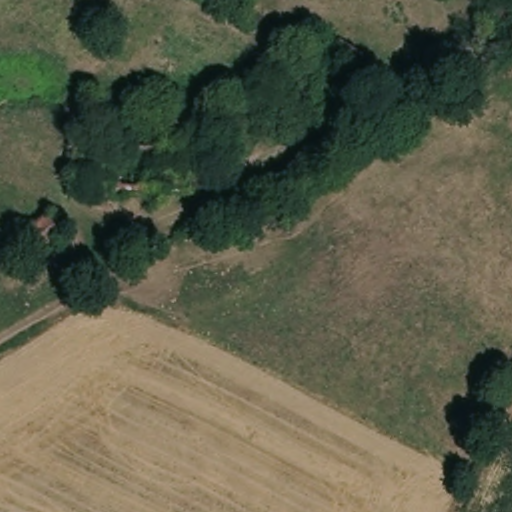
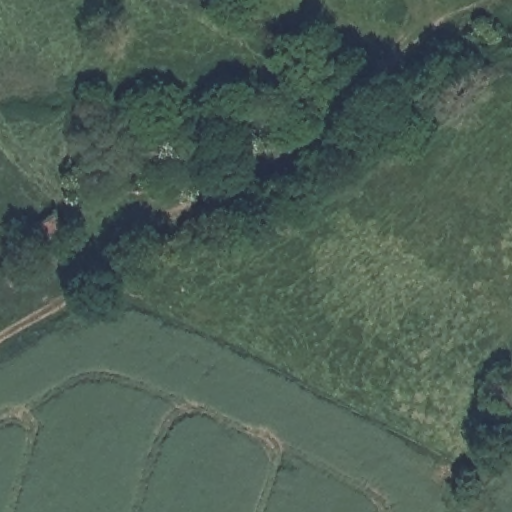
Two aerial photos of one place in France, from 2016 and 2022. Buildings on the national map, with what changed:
unchanged [(335,121),(303,99),(307,94),(327,64),(330,59),(335,53),(337,49),(340,44),(341,44),(342,43),(343,40),(345,41),(347,44),(348,44),(350,45),(352,47),(370,60),(375,64),(335,121)]
unchanged [(95,176),(96,158),(96,142),(94,141),(75,140),(75,137),(76,125),(81,125),(83,125),(207,126),(209,126),(240,103),(242,101),(252,94),(254,93),(280,126),(232,160),(216,139),(210,142),(211,184),(194,184),(194,190),(167,189),(167,193),(95,189),(95,176)]
unchanged [(94,141),(96,142),(96,158),(95,176),(95,189),(71,189),(71,188),(70,171),(70,169),(70,168),(70,166),(70,156),(70,153),(70,151),(70,146),(70,145),(70,144),(70,143),(70,140),(70,139),(75,140),(94,141)]
unchanged [(234,230),(221,208),(280,175),(293,199),(234,230)]
unchanged [(70,237),(45,255),(41,250),(30,258),(29,255),(28,254),(25,249),(21,243),(20,242),(20,241),(20,240),(24,237),(45,220),(47,219),(50,216),(53,214),(70,237)]

